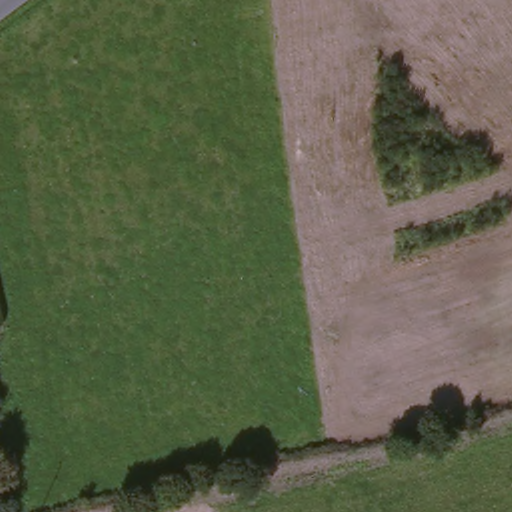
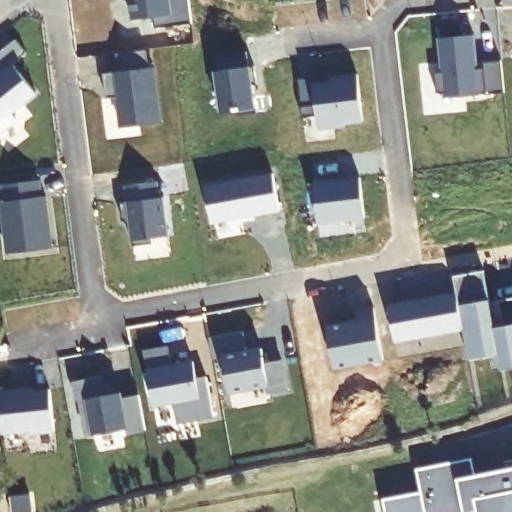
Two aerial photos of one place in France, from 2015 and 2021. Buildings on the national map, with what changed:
new [(190,25),(153,28),(152,17),(131,20),(129,0),(188,0),(190,25)]
new [(440,70),(437,37),(472,34),(475,68),(481,67),(481,61),(499,60),(502,92),(442,97),(442,92),(435,93),(432,71),(440,70)]
new [(15,39),(26,53),(13,64),(0,74),(0,51),(2,50),(15,39)]
new [(116,55),(150,51),(152,69),(158,124),(119,129),(115,98),(104,99),(102,74),(119,72),(116,55)]
new [(215,70),(213,55),(246,51),(248,65),(253,65),(255,84),(251,85),(254,112),(236,115),(236,110),(218,111),(213,70),(215,70)]
new [(335,79),(356,76),(361,123),(342,125),(343,128),(317,130),(316,117),(300,120),(300,107),(297,80),(312,79),(312,85),(336,83),(335,79)]
new [(272,174),(278,210),(210,221),(204,185),(272,174)]
new [(359,179),(363,218),(317,224),(313,183),(359,179)]
new [(127,202),(125,186),(157,182),(159,199),(163,198),(168,237),(152,239),(152,245),(132,247),(129,220),(122,221),(119,203),(127,202)]
new [(502,326),(497,300),(512,298),(512,367),(499,370),(496,354),(467,359),(462,329),(456,293),(453,276),(483,271),(493,328),(502,326)]
new [(456,293),(462,329),(394,340),(387,305),(456,293)]
new [(357,320),(356,310),(373,307),(382,358),(333,367),(326,325),(357,320)]
new [(243,332),(246,351),(261,349),(264,363),(281,360),(287,391),(268,394),(266,385),(228,392),(222,356),(213,359),(209,338),(243,332)]
new [(169,345),(172,365),(193,361),(196,378),(206,376),(213,417),(177,422),(173,402),(153,406),(143,349),(169,345)]
new [(103,375),(106,395),(120,392),(121,397),(139,395),(145,430),(126,433),(125,428),(87,435),(81,400),(77,400),(74,380),(103,375)]
new [(416,470),(471,459),(474,475),(512,468),(512,512),(386,512),(383,500),(420,491),(416,470)]
new [(30,512),(11,512),(9,497),(28,495),(30,512)]

